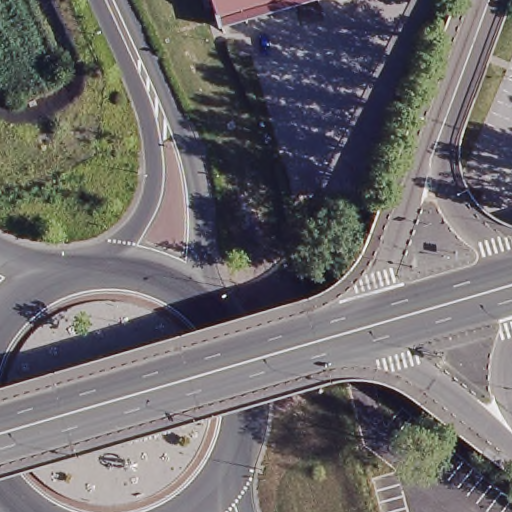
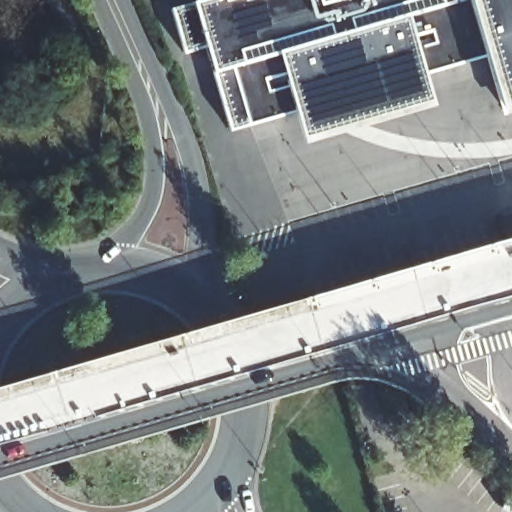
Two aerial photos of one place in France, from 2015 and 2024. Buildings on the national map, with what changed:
new [(512,94),(496,99),(484,55),(423,74),(428,95),(305,130),(296,107),(228,125),(206,41),(181,50),(168,1),(175,0),(512,0),(512,94)]

